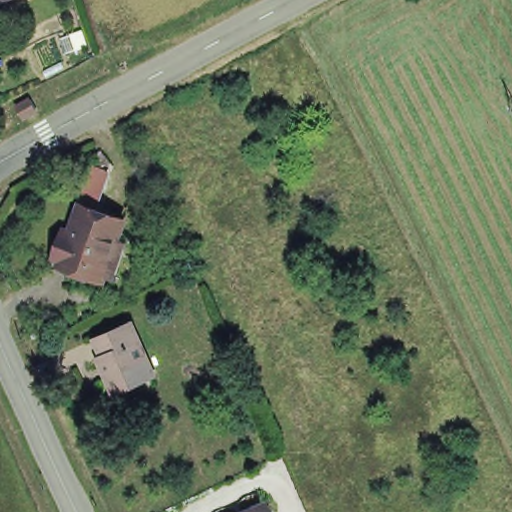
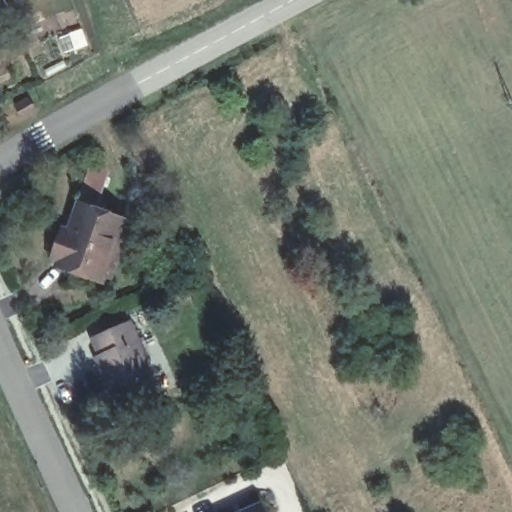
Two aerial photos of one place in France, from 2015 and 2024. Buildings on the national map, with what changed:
unchanged [(111,275),(104,272),(60,257),(52,255),(60,230),(69,232),(79,205),(123,220),(117,240),(125,243),(111,275)]
unchanged [(103,362),(109,359),(102,341),(139,326),(161,377),(117,395),(103,362)]
unchanged [(252,497),(258,512),(219,512),(252,497)]

